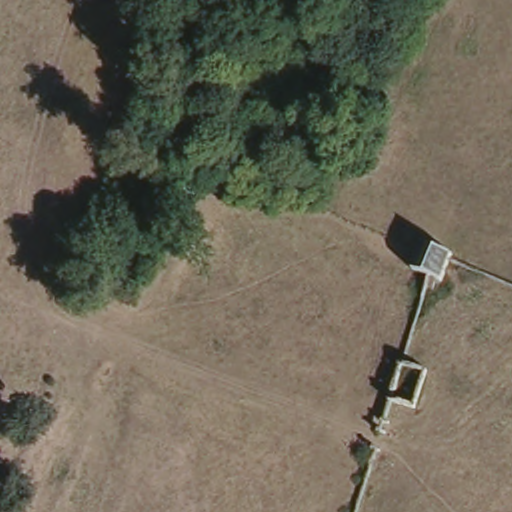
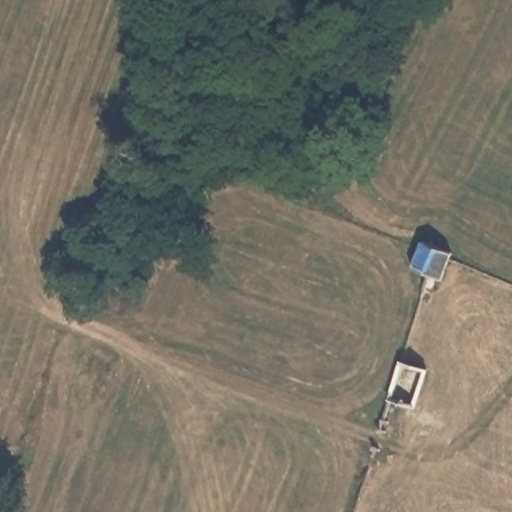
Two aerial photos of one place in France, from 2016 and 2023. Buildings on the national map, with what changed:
unchanged [(428,277),(412,271),(420,252),(424,243),(452,255),(450,259),(441,282),(428,277)]
unchanged [(389,402),(401,363),(427,371),(415,409),(389,402)]

